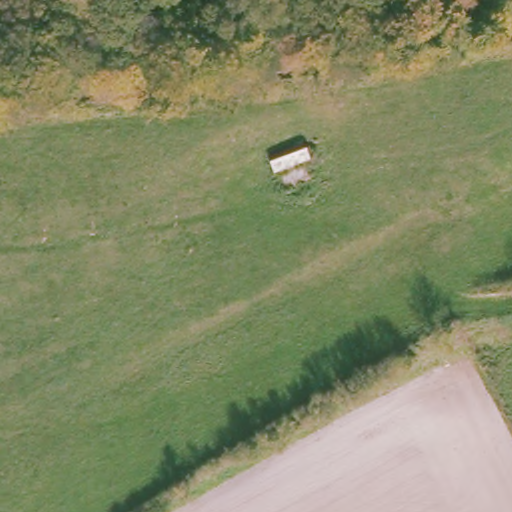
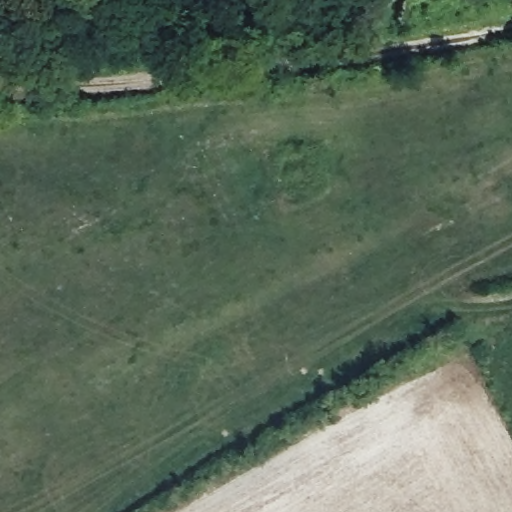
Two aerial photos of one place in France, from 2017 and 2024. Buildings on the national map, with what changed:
unchanged [(279,170),(256,182),(247,167),(271,155),(279,170)]

